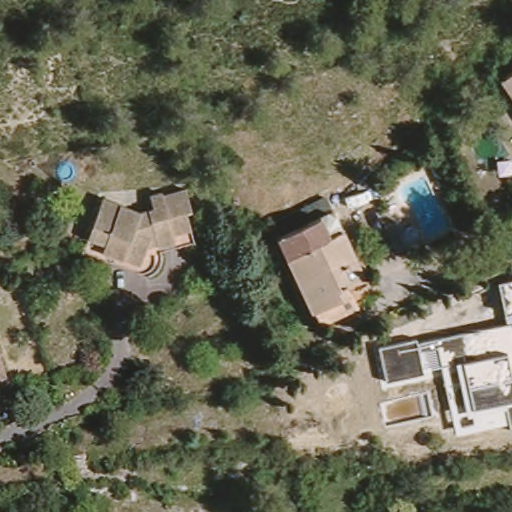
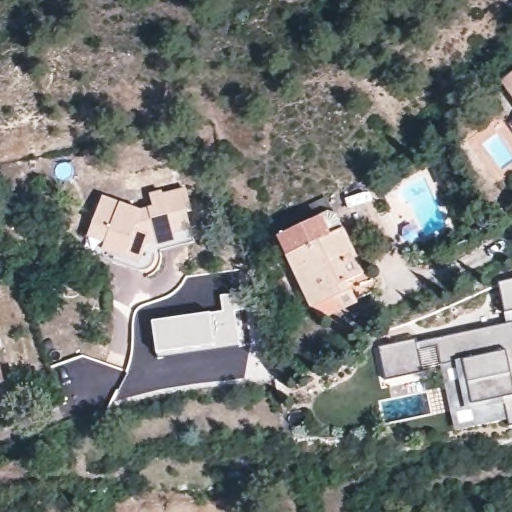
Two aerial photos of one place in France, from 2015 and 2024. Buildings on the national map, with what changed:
unchanged [(512,75),(512,98),(501,83),(512,75)]
unchanged [(451,180),(440,185),(427,160),(438,154),(451,180)]
unchanged [(105,187),(143,202),(157,198),(153,185),(166,182),(167,186),(188,179),(195,201),(188,201),(194,219),(176,224),(178,232),(148,238),(143,254),(105,241),(108,233),(91,227),(105,187)]
unchanged [(332,211),(362,276),(346,283),(355,301),(318,318),(314,309),(310,311),(277,237),(332,211)]
unchanged [(198,234),(157,243),(158,247),(157,250),(157,253),(155,256),(152,259),(148,260),(144,261),(140,261),(135,258),(118,252),(86,240),(91,227),(108,233),(105,241),(143,254),(148,238),(178,232),(176,224),(194,219),(198,234)]
unchanged [(506,421),(455,432),(435,338),(507,323),(499,282),(512,279),(512,427),(508,428),(506,421)]
new [(221,310),(219,294),(239,292),(241,307),(236,308),(242,345),(155,356),(150,320),(221,310)]
unchanged [(425,373),(385,382),(378,348),(418,338),(425,373)]
unchanged [(0,385),(0,381),(2,384),(0,385)]

